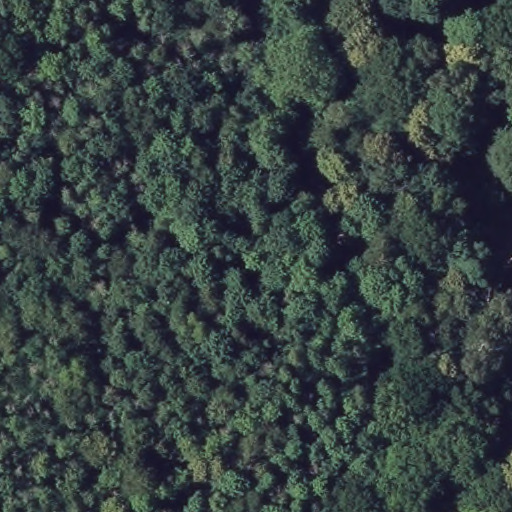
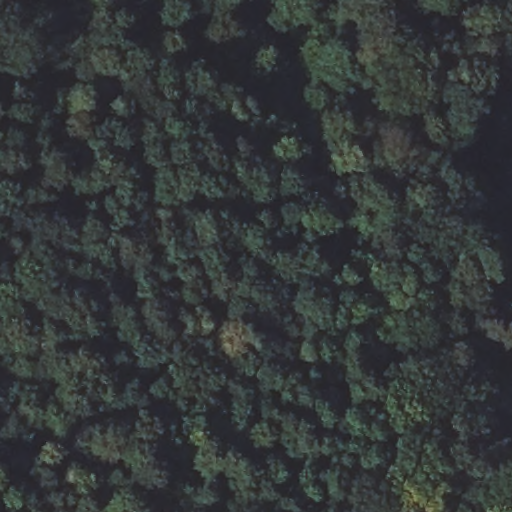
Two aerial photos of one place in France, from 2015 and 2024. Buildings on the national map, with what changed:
unchanged [(495,511),(496,512),(494,512),(495,511)]

